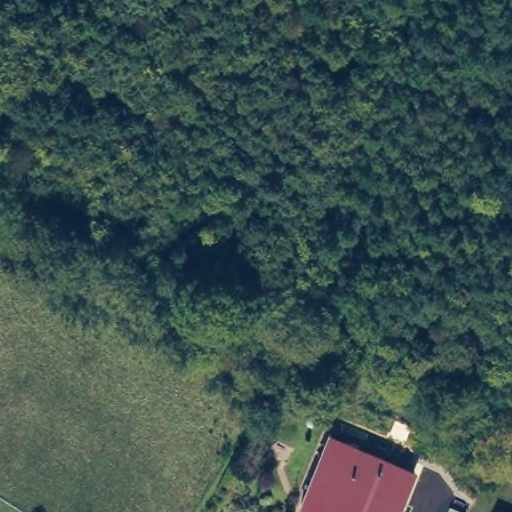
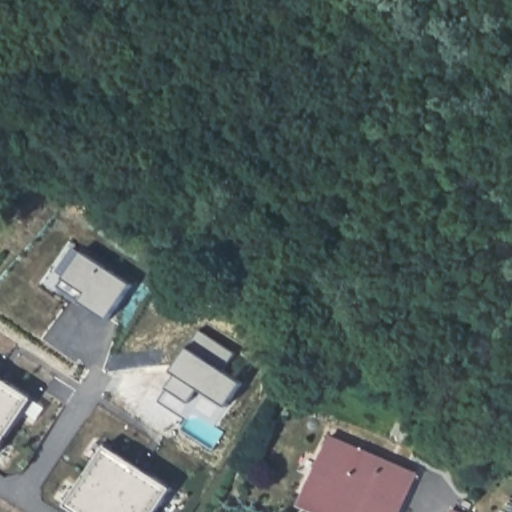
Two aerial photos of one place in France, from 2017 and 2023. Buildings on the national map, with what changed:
new [(108,319),(80,300),(87,291),(65,276),(82,251),(132,284),(108,319)]
new [(227,405),(198,387),(192,397),(165,381),(172,370),(187,346),(200,330),(237,353),(225,370),(243,382),(227,405)]
new [(34,400),(0,456),(0,379),(34,400)]
unchanged [(351,512),(301,489),(327,433),(410,474),(393,512),(351,512)]
new [(180,494),(169,512),(76,512),(113,452),(180,494)]

